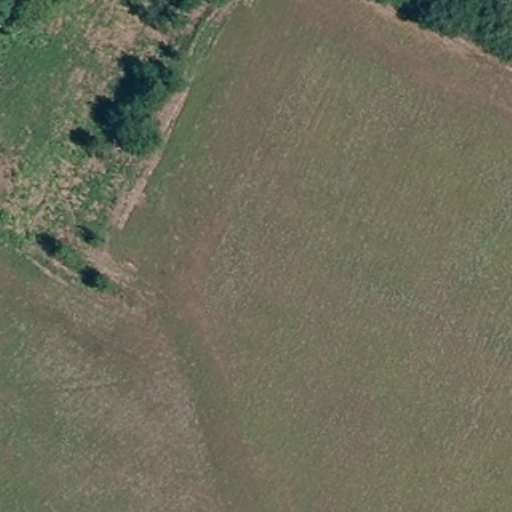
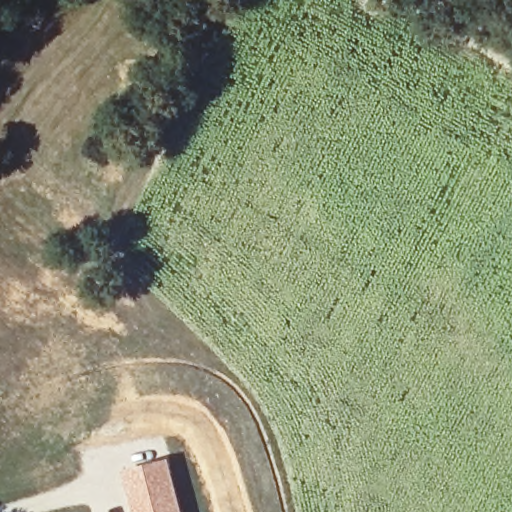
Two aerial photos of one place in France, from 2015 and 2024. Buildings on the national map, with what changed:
new [(166,457),(180,512),(130,512),(118,470),(166,457)]

